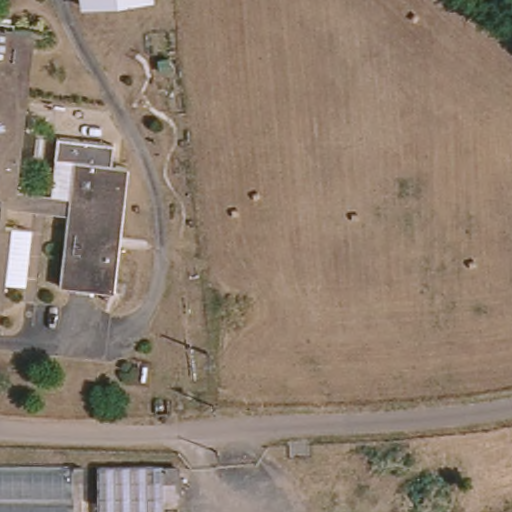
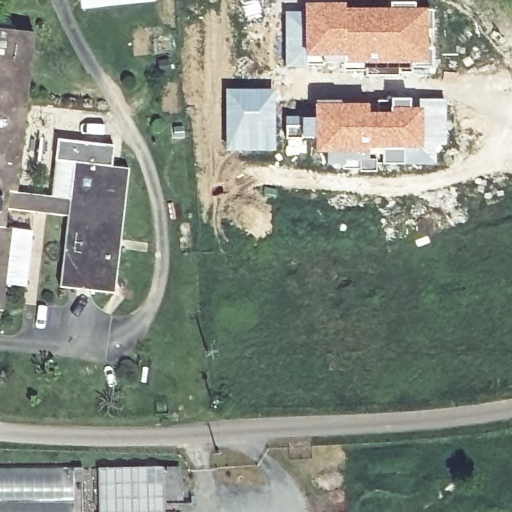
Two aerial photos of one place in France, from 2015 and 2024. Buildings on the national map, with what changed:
unchanged [(83,0),(146,0),(147,6),(84,10),(83,0)]
new [(302,3),(345,2),(345,8),(388,8),(388,2),(415,2),(415,8),(430,8),(430,67),(342,65),(342,59),(305,60),(302,11),(302,3)]
new [(283,11),(302,11),(305,60),(305,67),(283,67),(283,11)]
unchanged [(22,189),(52,196),(60,138),(119,146),(117,173),(134,176),(119,305),(60,298),(69,220),(9,212),(6,232),(18,234),(7,318),(0,317),(0,25),(39,30),(22,189)]
new [(275,88),(275,152),(225,152),(224,88),(275,88)]
new [(312,154),(312,139),(285,138),(285,116),(312,117),(312,101),(369,103),(369,111),(387,111),(387,98),(410,98),(410,107),(417,107),(417,99),(447,98),(447,154),(441,154),(440,163),(380,164),(380,155),(312,154)]
unchanged [(163,468),(164,506),(163,512),(99,512),(99,468),(163,468)]
unchanged [(72,512),(0,512),(0,470),(72,470),(72,512)]

